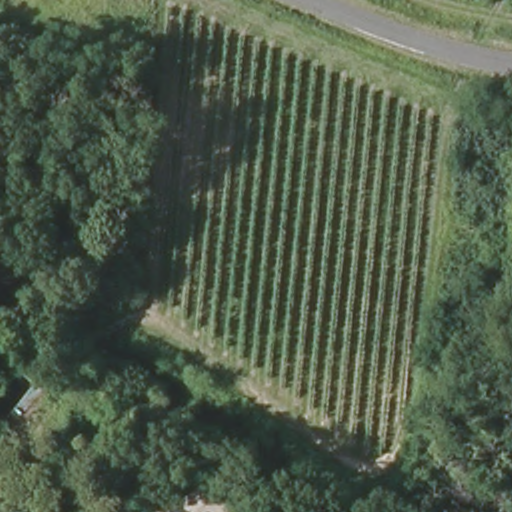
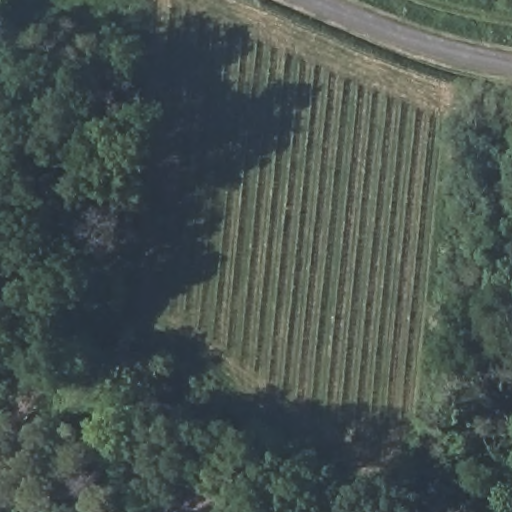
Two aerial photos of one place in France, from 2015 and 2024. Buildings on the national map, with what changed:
[]

